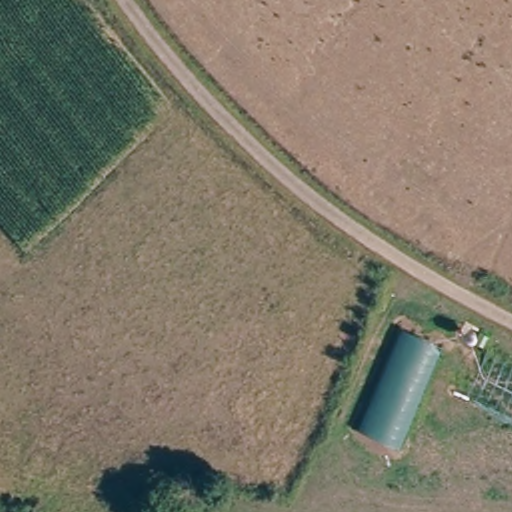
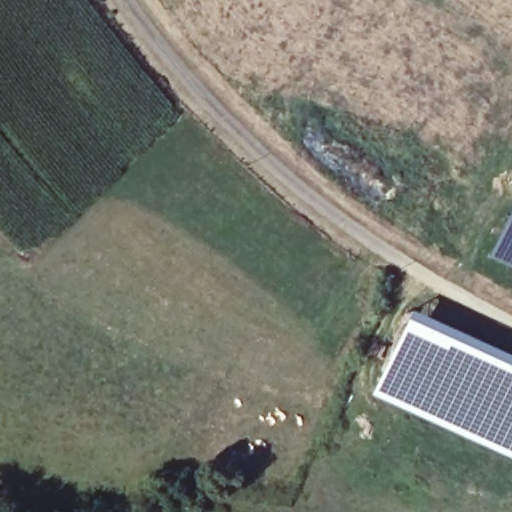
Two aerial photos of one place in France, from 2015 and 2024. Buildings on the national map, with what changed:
new [(512,268),(487,257),(512,203),(512,268)]
new [(512,356),(512,459),(478,443),(369,394),(406,308),(512,356)]

